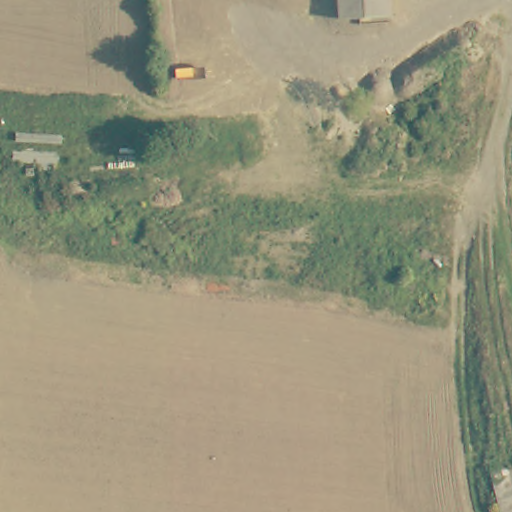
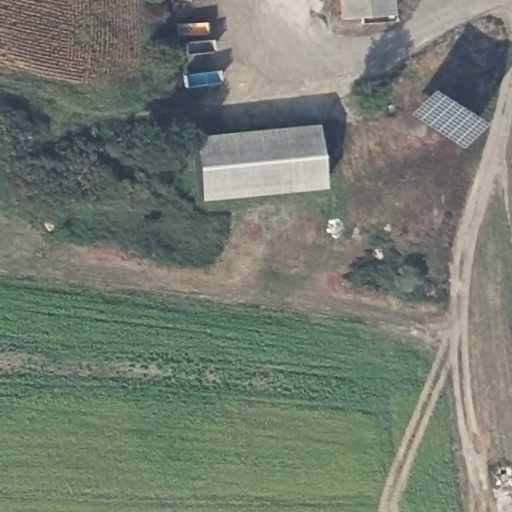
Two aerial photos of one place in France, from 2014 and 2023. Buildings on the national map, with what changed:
unchanged [(389,17),(340,19),(338,0),(388,0),(389,17)]
new [(191,136),(316,122),(323,187),(197,201),(191,136)]
demolished [(327,143),(326,130),(387,125),(387,138),(327,143)]

